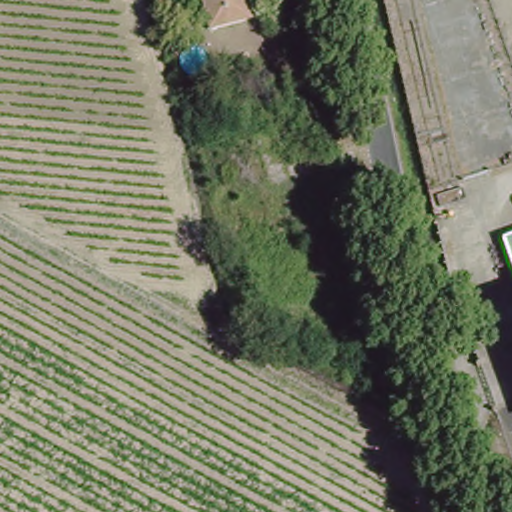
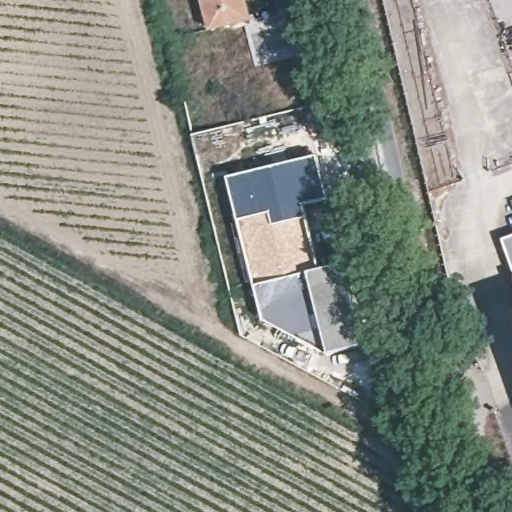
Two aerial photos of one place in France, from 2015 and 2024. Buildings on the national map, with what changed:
unchanged [(250,11),(212,20),(206,0),(247,0),(250,11)]
new [(329,354),(263,319),(229,178),(317,156),(327,200),(304,205),(320,270),(348,263),(367,344),(329,354)]
unchanged [(505,240),(512,238),(512,275),(502,241),(505,240)]

